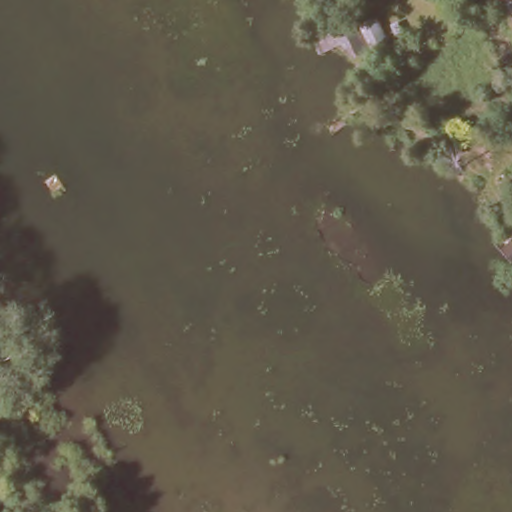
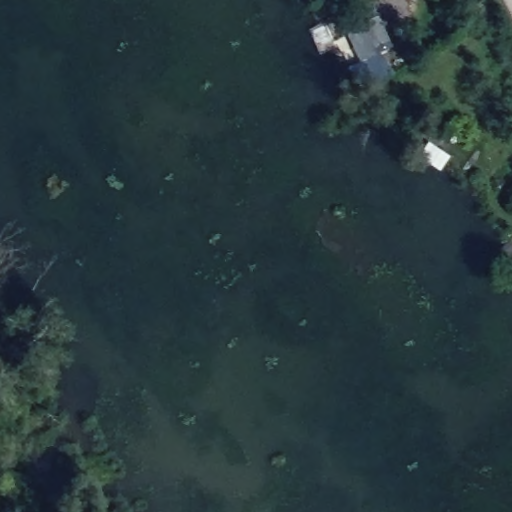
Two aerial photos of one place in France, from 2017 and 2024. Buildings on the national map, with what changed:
unchanged [(370,25),(377,48),(355,51),(349,29),(370,25)]
unchanged [(18,512),(0,512),(0,506),(13,501),(18,512)]

